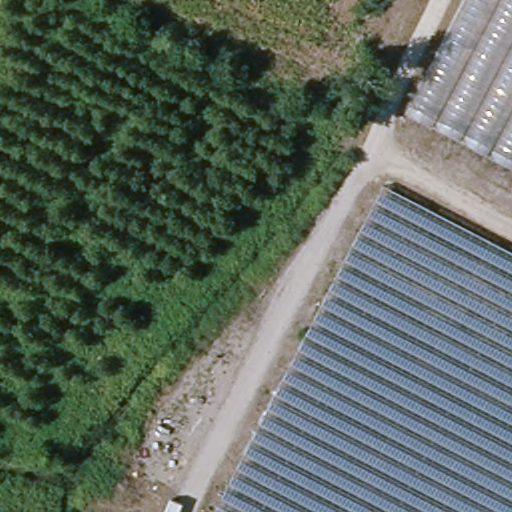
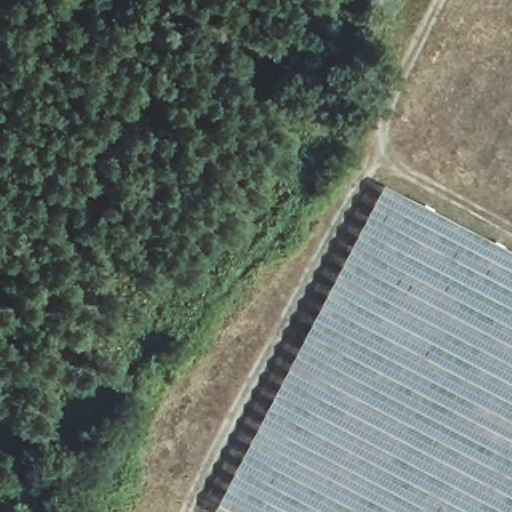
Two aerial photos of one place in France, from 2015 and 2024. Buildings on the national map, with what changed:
demolished [(456,0),(512,0),(512,171),(400,113),(456,0)]
unchanged [(512,252),(512,512),(215,512),(213,511),(381,184),(512,252)]

